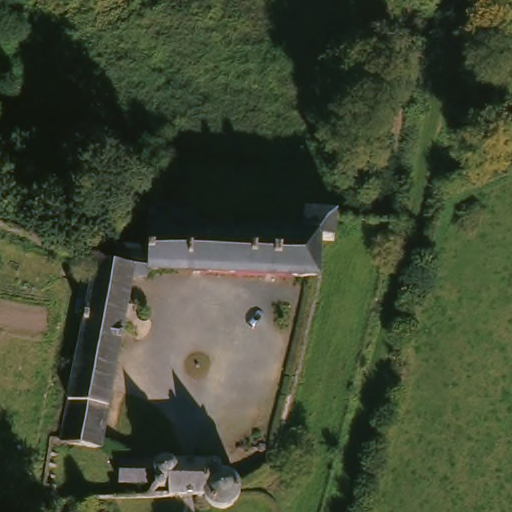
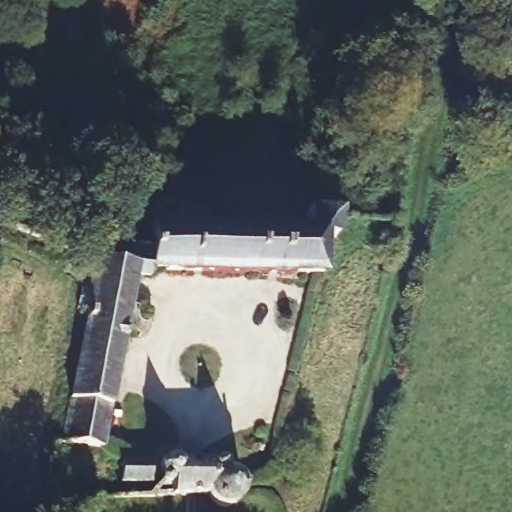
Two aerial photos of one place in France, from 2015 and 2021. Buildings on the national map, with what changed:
unchanged [(135,226),(135,222),(135,220),(151,220),(152,214),(185,216),(185,217),(185,227),(187,227),(202,228),(257,232),(270,232),(314,235),(317,223),(317,220),(325,220),(338,221),(334,244),(324,243),(320,265),(317,283),(228,277),(132,272),(135,226)]
unchanged [(96,451),(62,444),(82,344),(96,270),(132,275),(135,275),(130,296),(114,366),(96,451)]
unchanged [(222,461),(223,466),(231,469),(237,474),(240,478),(240,484),(235,490),(231,495),(228,499),(227,503),(207,501),(207,498),(204,498),(194,497),(162,495),(163,484),(117,480),(121,451),(222,461)]

